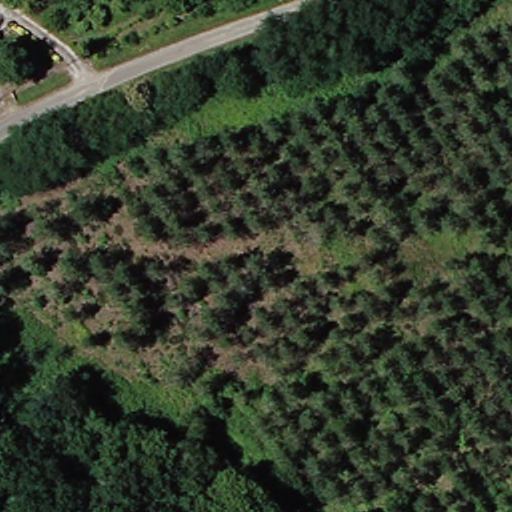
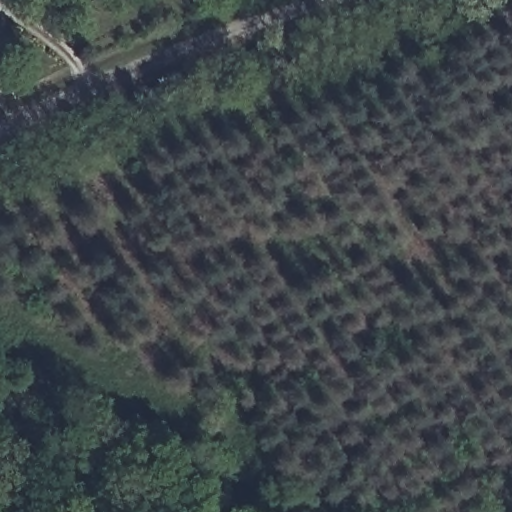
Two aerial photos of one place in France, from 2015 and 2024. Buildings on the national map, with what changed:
unchanged [(6,0),(14,0),(10,4),(6,0)]

